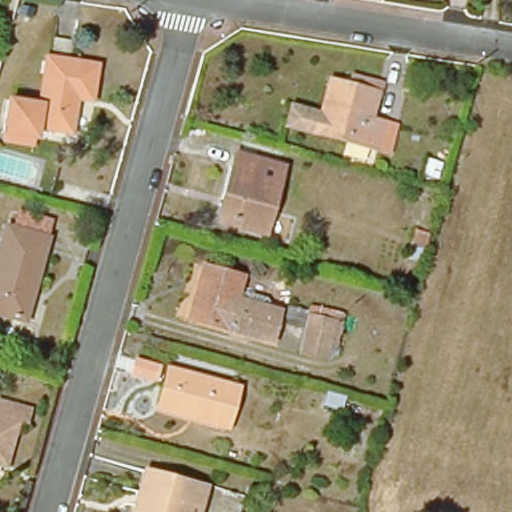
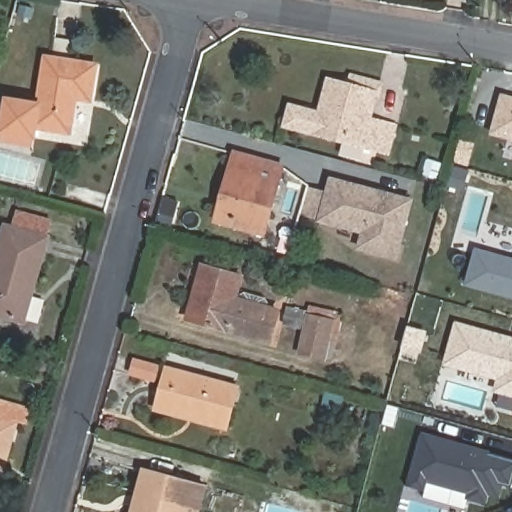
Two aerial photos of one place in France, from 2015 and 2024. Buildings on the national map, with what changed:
unchanged [(2,140),(4,133),(8,100),(40,105),(47,58),(98,66),(92,101),(76,98),(70,132),(37,127),(35,138),(34,145),(2,140)]
unchanged [(370,124),(398,131),(392,157),(285,129),(290,110),(321,119),(330,85),(350,90),(353,80),(383,88),(380,99),(377,98),(370,124)]
new [(512,99),(512,138),(509,137),(493,132),(503,96),(512,99)]
unchanged [(263,235),(216,221),(236,152),(283,166),(263,235)]
new [(318,223),(300,218),(308,187),(326,191),(331,177),(415,199),(398,260),(357,249),(360,233),(318,223)]
unchanged [(13,229),(18,212),(51,221),(46,238),(47,239),(24,322),(0,315),(0,249),(7,227),(13,229)]
demolished [(429,253),(410,248),(415,230),(433,235),(429,253)]
new [(512,261),(512,299),(464,286),(474,250),(512,261)]
unchanged [(242,276),(236,299),(278,310),(269,342),(188,320),(203,266),(242,276)]
unchanged [(325,358),(301,353),(309,316),(332,321),(325,358)]
new [(496,381),(444,367),(456,322),(512,337),(512,397),(493,393),(496,381)]
new [(422,355),(402,349),(408,326),(428,332),(422,355)]
unchanged [(159,402),(168,369),(238,388),(226,429),(200,422),(156,411),(159,402)]
unchanged [(28,410),(25,421),(16,420),(5,465),(0,464),(0,402),(28,410)]
new [(424,498),(426,490),(409,485),(421,431),(512,462),(512,482),(511,485),(505,484),(500,500),(488,499),(486,506),(468,501),(466,510),(424,498)]
unchanged [(140,490),(145,469),(206,486),(200,505),(198,512),(134,512),(140,490)]

